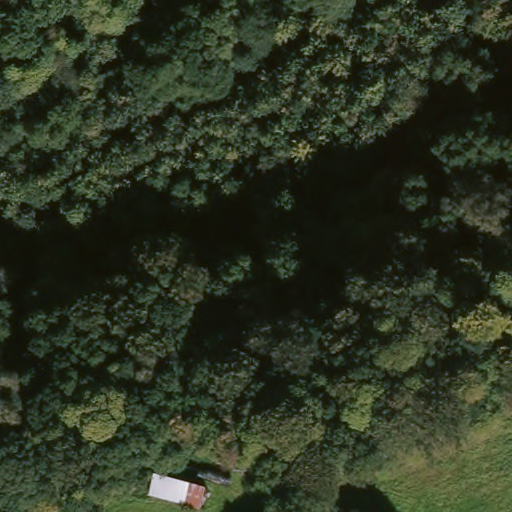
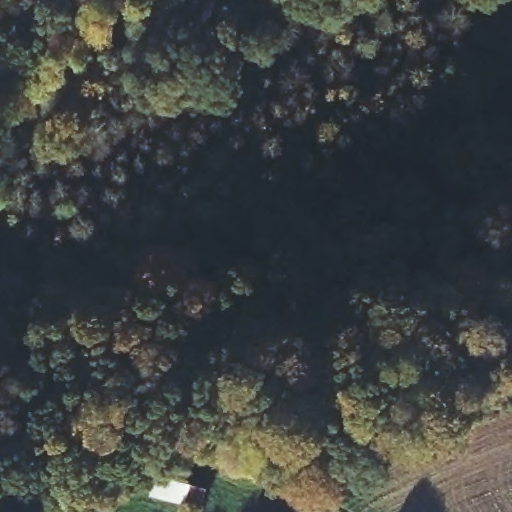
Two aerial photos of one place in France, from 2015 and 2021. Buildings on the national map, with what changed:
unchanged [(199,512),(182,512),(145,502),(153,473),(206,490),(199,512)]

